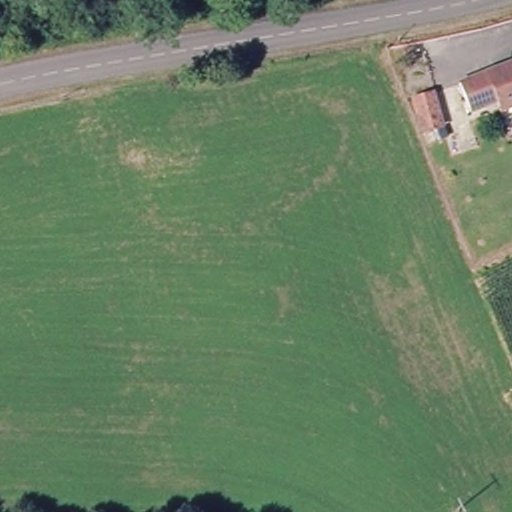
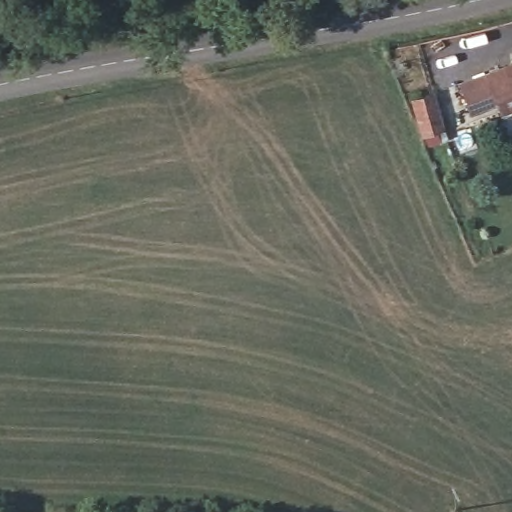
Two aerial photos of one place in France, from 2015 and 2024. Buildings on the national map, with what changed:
unchanged [(471,112),(459,82),(512,63),(512,107),(507,109),(502,100),(471,112)]
unchanged [(440,108),(446,134),(431,137),(425,112),(440,108)]

